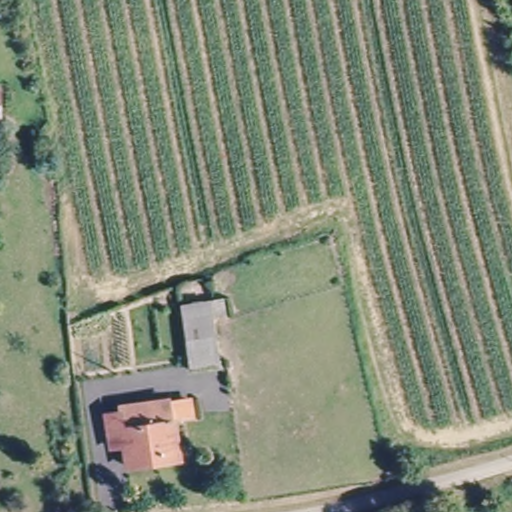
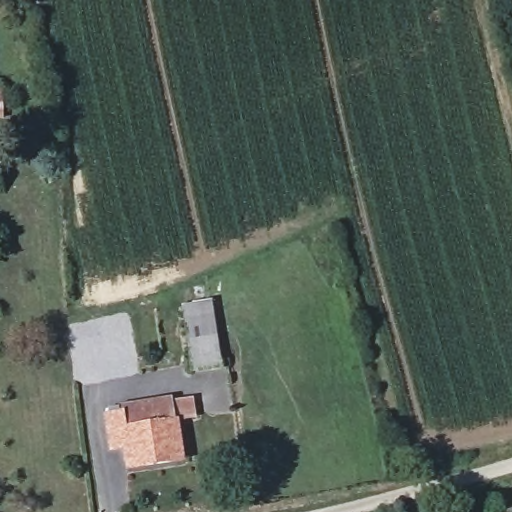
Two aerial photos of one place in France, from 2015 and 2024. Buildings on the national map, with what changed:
unchanged [(222,362),(186,362),(187,297),(219,298),(222,362)]
unchanged [(177,403),(177,463),(130,463),(129,447),(115,447),(116,412),(130,412),(130,405),(177,403)]

